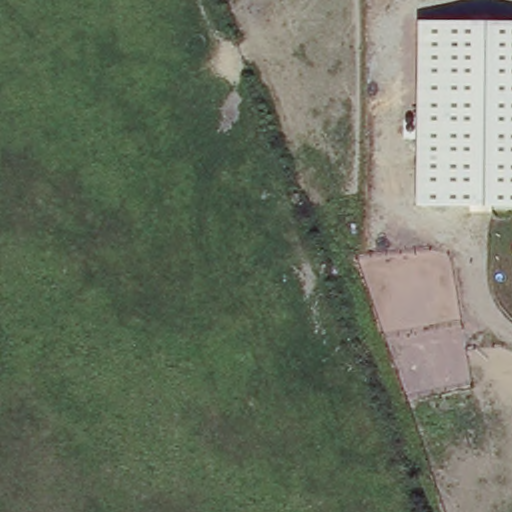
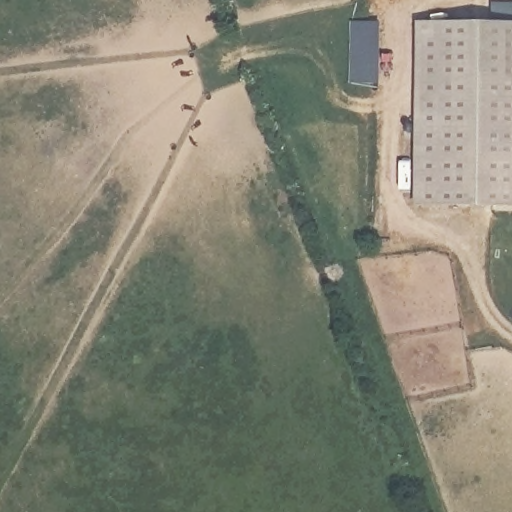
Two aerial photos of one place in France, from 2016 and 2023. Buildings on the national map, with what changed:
unchanged [(417,21),(492,21),(493,4),(512,4),(512,207),(416,206),(417,21)]
new [(381,22),(381,81),(351,82),(352,21),(381,22)]

